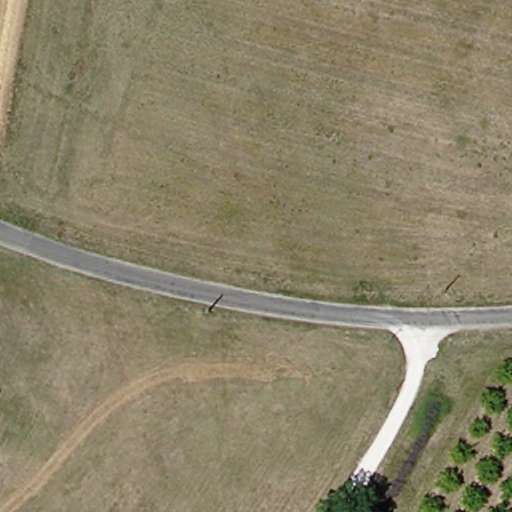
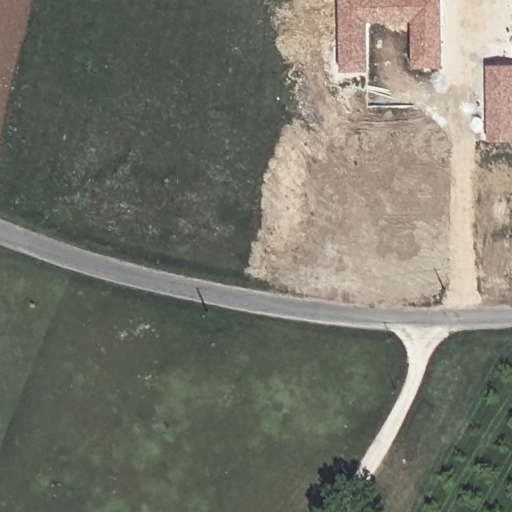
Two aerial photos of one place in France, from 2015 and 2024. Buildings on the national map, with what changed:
new [(413,67),(411,20),(369,21),(369,71),(341,72),(339,0),(441,0),(443,66),(413,67)]
new [(487,65),(512,65),(512,140),(487,140),(487,65)]

